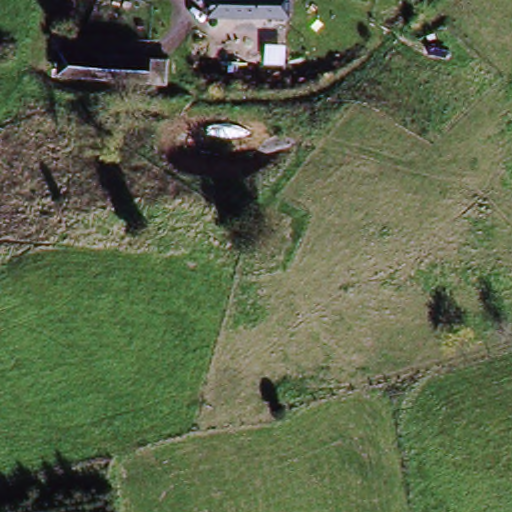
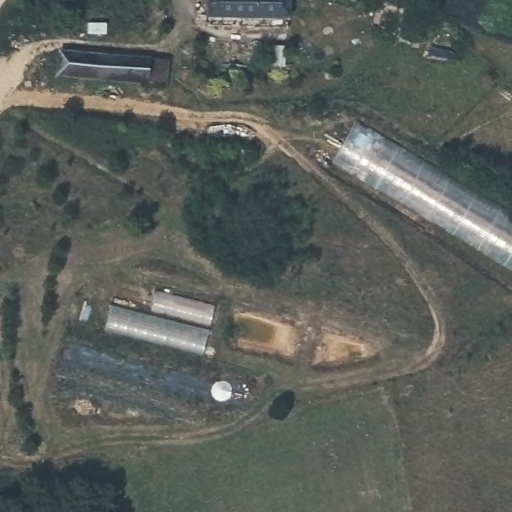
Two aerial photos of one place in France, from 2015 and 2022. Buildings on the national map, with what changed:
unchanged [(271,22),(210,25),(210,0),(270,0),(271,22)]
unchanged [(171,89),(101,85),(81,83),(80,77),(80,71),(80,58),(102,60),(172,62),(171,89)]
new [(512,217),(512,268),(332,164),(356,125),(512,217)]

